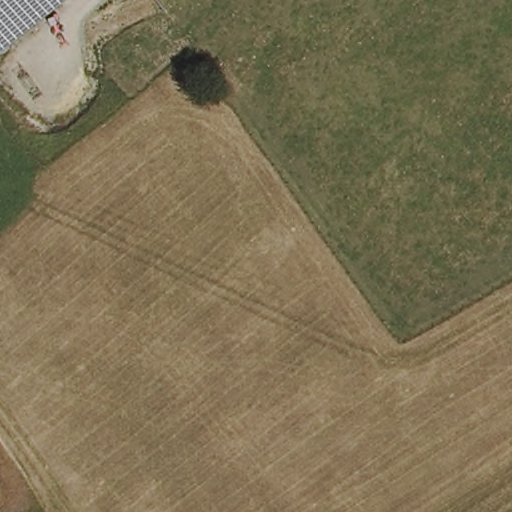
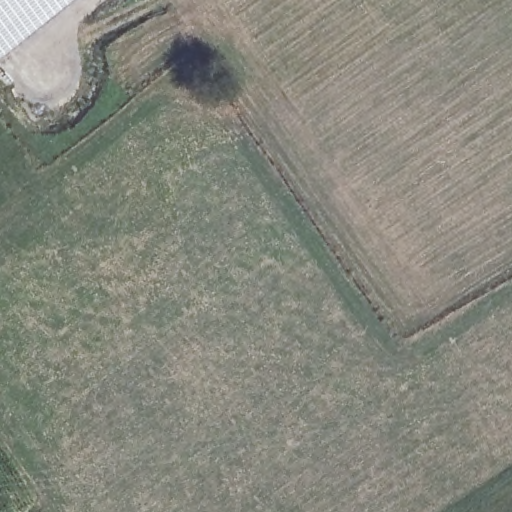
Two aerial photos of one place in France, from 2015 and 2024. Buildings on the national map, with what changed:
unchanged [(0,57),(0,0),(71,0),(0,57)]

